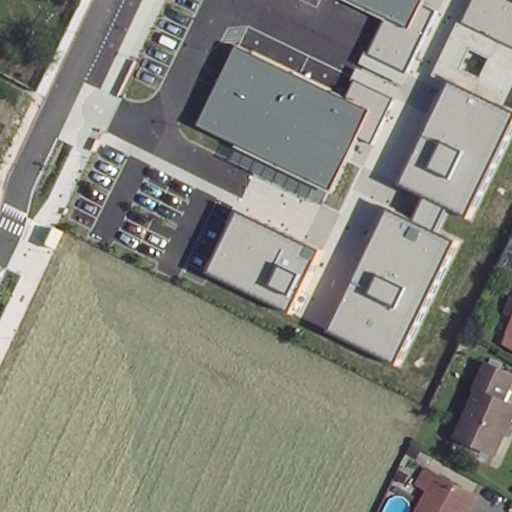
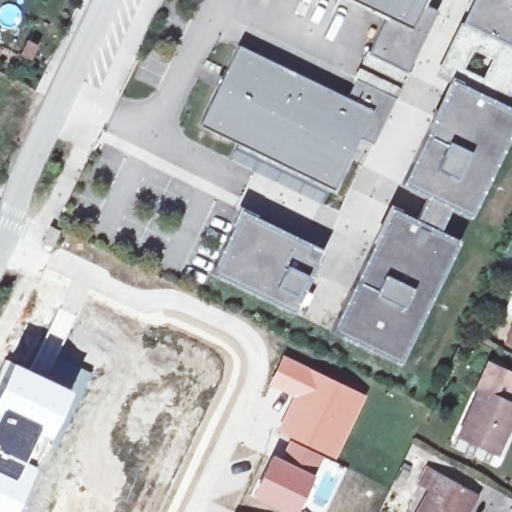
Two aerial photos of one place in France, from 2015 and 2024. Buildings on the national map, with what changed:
unchanged [(418,223),(430,196),(404,184),(454,81),(434,75),(460,21),(466,23),(477,0),(512,0),(512,83),(502,105),(512,110),(512,129),(470,216),(450,207),(438,232),(458,242),(397,362),(334,330),(391,210),(418,223)]
unchanged [(437,11),(405,83),(363,65),(389,15),(357,0),(425,0),(423,5),(437,11)]
unchanged [(346,99),(360,69),(401,87),(375,143),(360,135),(333,190),(201,125),(239,49),(346,99)]
unchanged [(324,250),(293,312),(213,271),(241,211),(324,250)]
unchanged [(503,334),(512,310),(512,338),(503,334)]
new [(288,438),(276,433),(292,396),(268,385),(282,353),(367,394),(336,460),(324,455),(313,474),(294,512),(285,512),(251,496),(271,452),(279,456),(288,438)]
new [(76,386),(63,415),(48,440),(12,512),(0,512),(0,374),(8,358),(76,386)]
unchanged [(512,374),(512,391),(507,401),(512,404),(512,420),(497,454),(462,437),(482,393),(477,390),(490,364),(512,374)]
unchanged [(469,497),(460,512),(413,512),(432,477),(469,497)]
new [(234,511),(235,512),(234,512),(234,511)]

